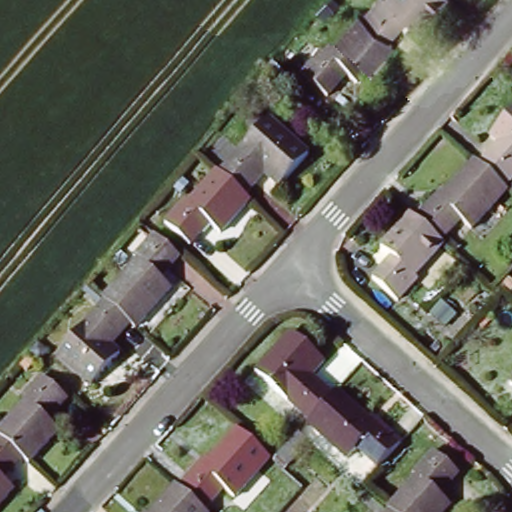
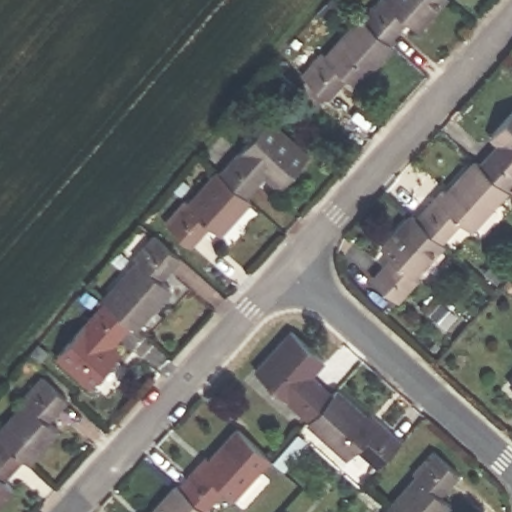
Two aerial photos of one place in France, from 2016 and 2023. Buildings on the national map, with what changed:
unchanged [(365,23),(384,3),(387,6),(392,0),(450,0),(421,31),(408,22),(400,31),(389,44),(365,23)]
unchanged [(327,102),(302,78),(323,55),(328,59),(362,20),(365,23),(389,44),(395,48),(359,89),(347,79),(339,89),(327,102)]
unchanged [(495,132),(512,114),(512,187),(510,188),(483,164),(496,150),(505,141),(495,132)]
unchanged [(245,192),(218,169),(268,115),(308,150),(281,183),(264,170),(256,178),(245,192)]
unchanged [(510,188),(512,190),(512,192),(477,230),(467,220),(448,242),(418,215),(432,200),(439,192),(443,196),(477,158),(483,164),(510,188)]
unchanged [(190,241),(165,218),(185,196),(192,199),(218,169),(245,192),(249,196),(220,228),(209,220),(202,228),(190,241)]
unchanged [(386,246),(415,213),(418,215),(448,242),(421,273),(425,277),(404,300),(378,277),(391,263),(397,256),(386,246)]
unchanged [(128,324),(103,302),(138,262),(134,258),(153,237),(178,260),(169,272),(162,281),(170,290),(137,331),(128,324)]
unchanged [(57,355),(103,302),(128,324),(117,336),(109,346),(117,354),(91,384),(57,355)]
unchanged [(334,387),(312,413),(260,367),(295,328),(325,355),(312,369),(322,378),(334,387)]
unchanged [(20,454),(0,436),(0,432),(27,401),(22,397),(41,375),(67,398),(47,419),(58,427),(27,460),(20,454)]
unchanged [(363,443),(350,457),(307,418),(312,413),(334,387),(338,383),(367,409),(370,406),(380,415),(400,433),(378,457),(363,443)]
unchanged [(235,498),(225,489),(206,510),(178,485),(194,468),(205,456),(211,461),(240,429),(271,457),(235,498)]
unchanged [(1,476),(12,486),(0,499),(0,436),(20,454),(1,476)]
unchanged [(393,506),(390,503),(420,470),(415,466),(432,446),(460,469),(450,480),(442,491),(452,501),(443,512),(400,512),(393,506)]
unchanged [(206,510),(208,512),(154,512),(178,485),(206,510)]
unchanged [(393,506),(400,512),(388,512),(393,506)]

